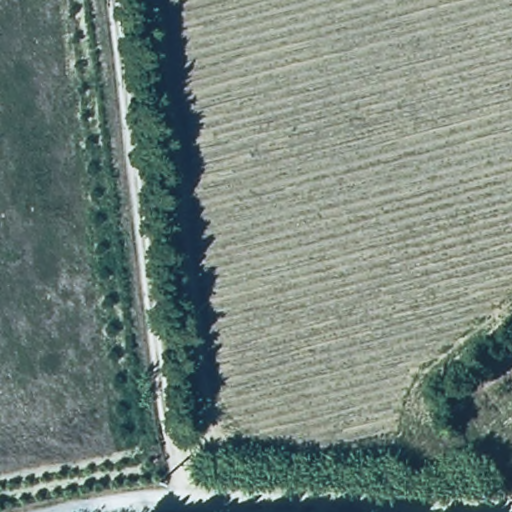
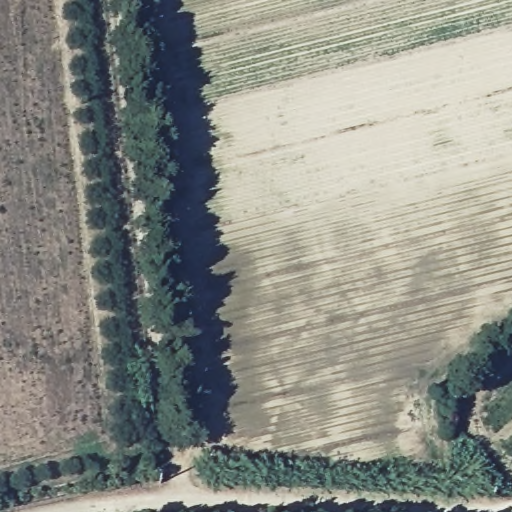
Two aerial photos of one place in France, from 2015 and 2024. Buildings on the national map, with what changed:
[]

